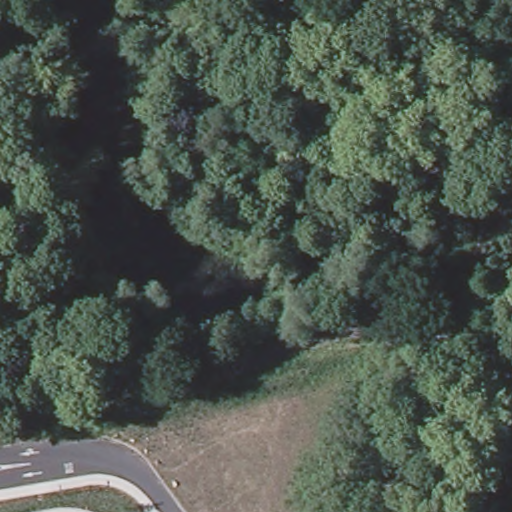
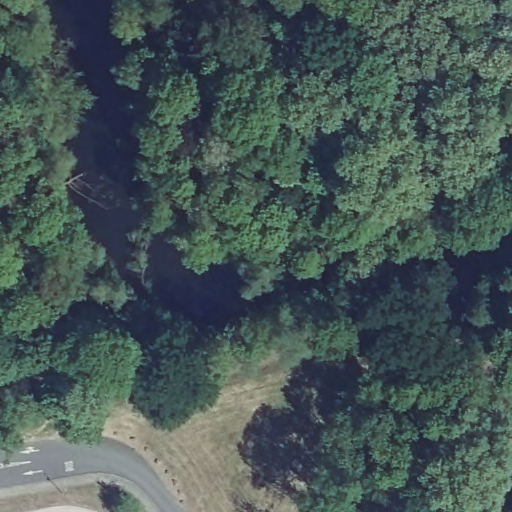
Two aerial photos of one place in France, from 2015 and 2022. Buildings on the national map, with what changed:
unchanged [(202,12),(199,0),(261,0),(202,12)]
unchanged [(412,35),(427,115),(341,133),(326,53),(412,35)]

